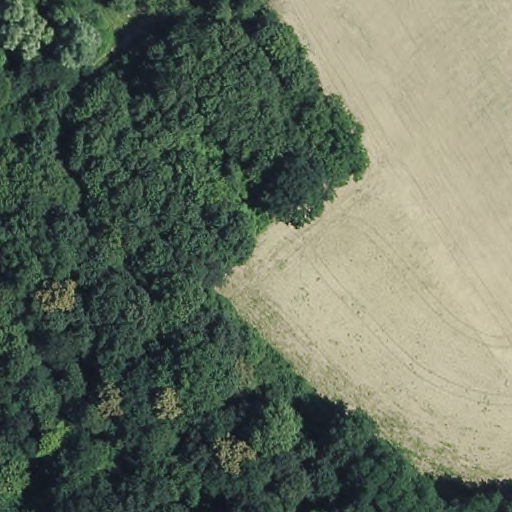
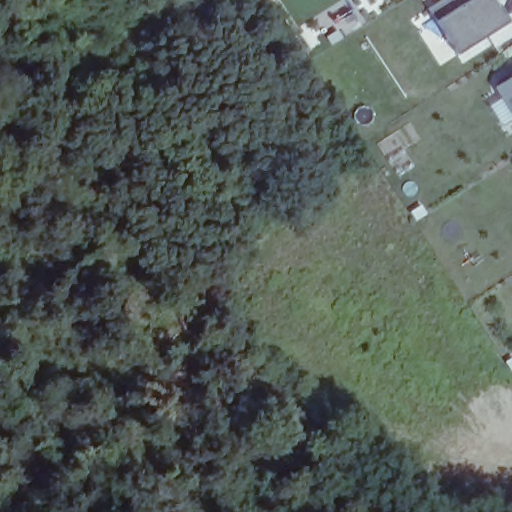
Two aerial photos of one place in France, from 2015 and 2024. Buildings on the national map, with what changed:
new [(437,21),(427,8),(440,0),(493,0),(495,4),(498,3),(510,21),(458,54),(437,21)]
new [(512,77),(512,111),(497,87),(512,77)]

